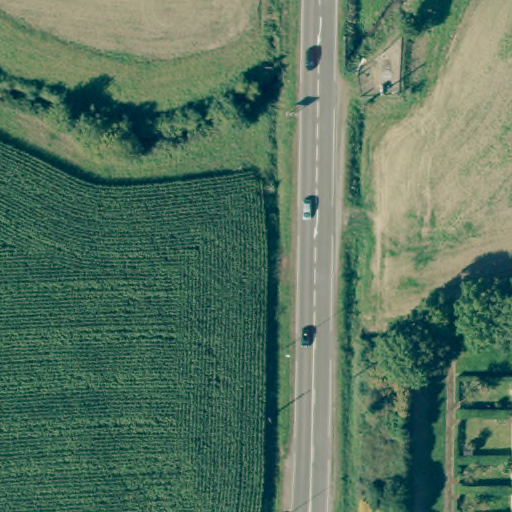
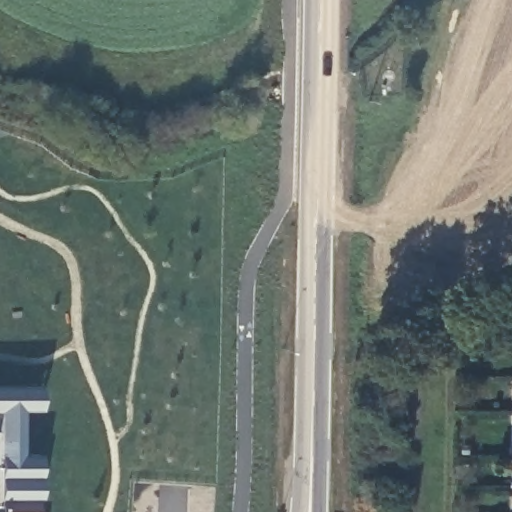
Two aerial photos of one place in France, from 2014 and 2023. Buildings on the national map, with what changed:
new [(36,384),(36,409),(21,409),(21,453),(37,454),(36,512),(0,512),(0,385),(36,384)]

